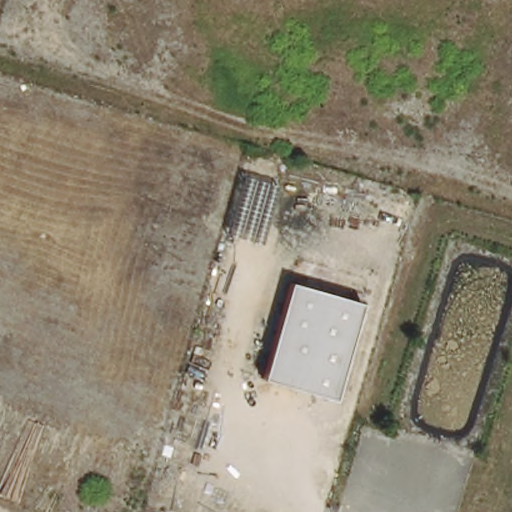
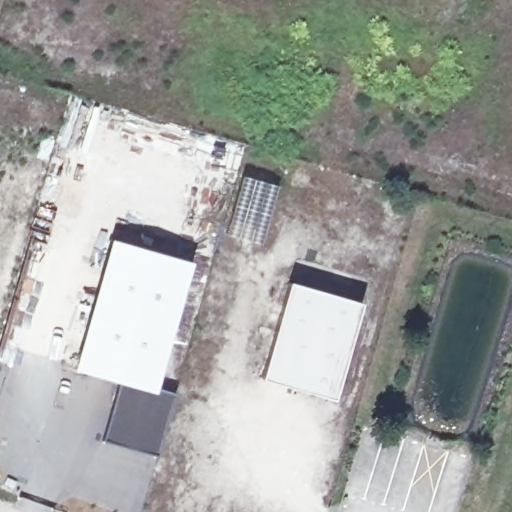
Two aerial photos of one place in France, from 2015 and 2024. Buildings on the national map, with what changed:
new [(111,238),(192,262),(157,386),(176,392),(158,456),(102,441),(119,382),(73,369),(111,238)]
unchanged [(287,281),(359,301),(332,398),(260,377),(287,281)]

